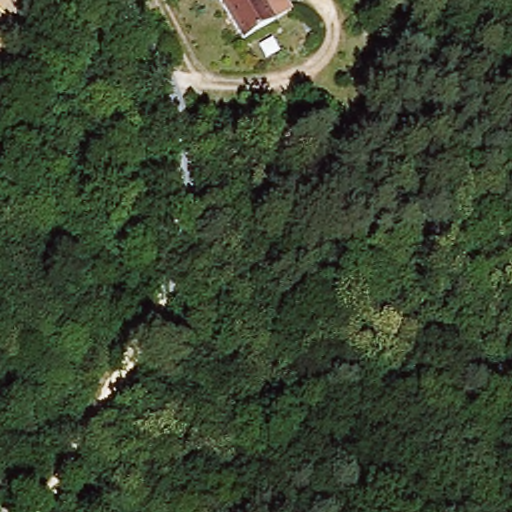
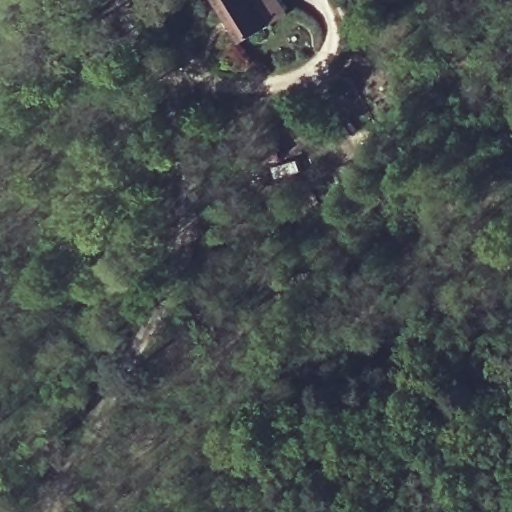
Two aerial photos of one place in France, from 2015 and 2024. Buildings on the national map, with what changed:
unchanged [(239,38),(222,0),(261,0),(272,24),(239,38)]
unchanged [(272,24),(261,0),(281,0),(288,16),(272,24)]

